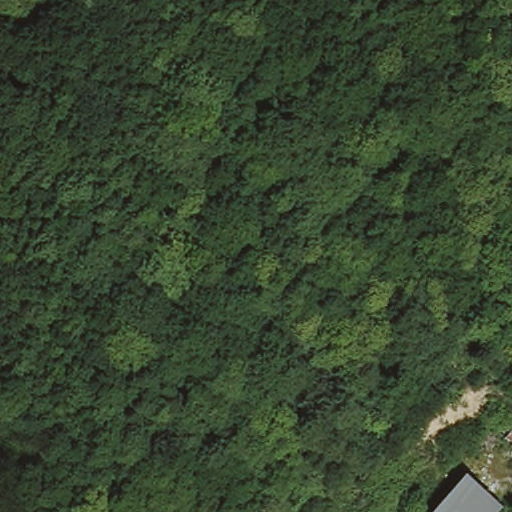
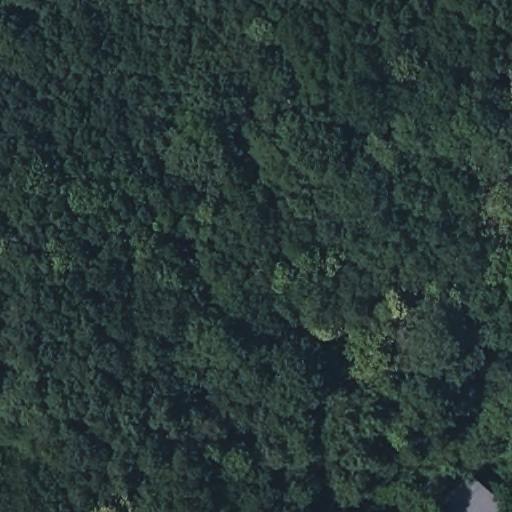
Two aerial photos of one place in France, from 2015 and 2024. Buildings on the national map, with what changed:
unchanged [(504,498),(492,512),(429,512),(469,464),(504,498)]

